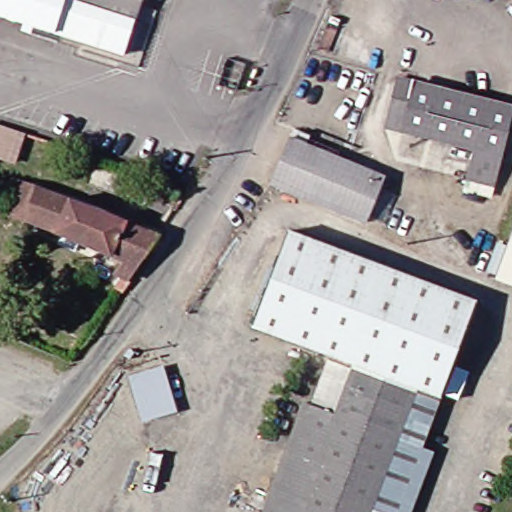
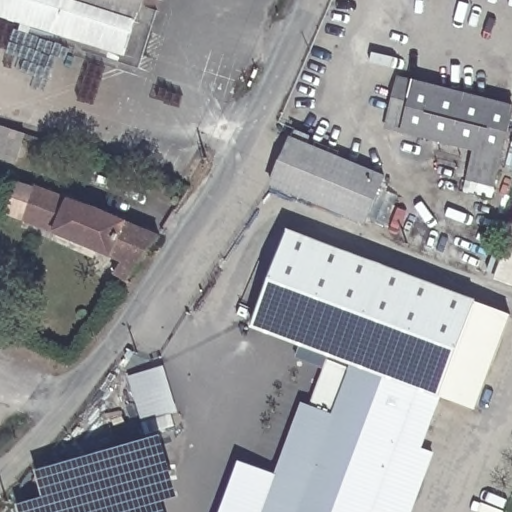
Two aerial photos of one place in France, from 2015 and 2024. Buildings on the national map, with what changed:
unchanged [(0,0),(141,0),(126,54),(0,16),(0,0)]
unchanged [(421,80),(512,102),(512,145),(499,195),(470,190),(480,150),(408,132),(392,127),(405,76),(421,80)]
unchanged [(22,142),(16,164),(0,159),(0,126),(25,134),(22,142)]
unchanged [(304,197),(277,186),(278,182),(285,164),(292,141),(294,137),(322,147),(350,159),(392,174),(374,222),(304,197)]
unchanged [(115,268),(120,255),(26,220),(7,212),(21,178),(40,185),(168,235),(140,280),(115,268)]
unchanged [(293,232),(483,298),(473,323),(287,250),(293,232)]
new [(512,241),(512,287),(498,281),(512,241)]
unchanged [(310,393),(319,397),(336,359),(356,366),(358,361),(262,324),(287,250),(473,323),(431,438),(442,442),(417,512),(267,512),(310,393)]
new [(445,399),(473,323),(481,303),(512,315),(476,411),(445,399)]
unchanged [(179,412),(145,423),(131,378),(164,366),(179,412)]
new [(45,497),(38,470),(162,436),(180,497),(164,502),(166,512),(21,512),(19,505),(45,497)]
new [(240,461),(280,477),(267,512),(221,512),(240,461)]

